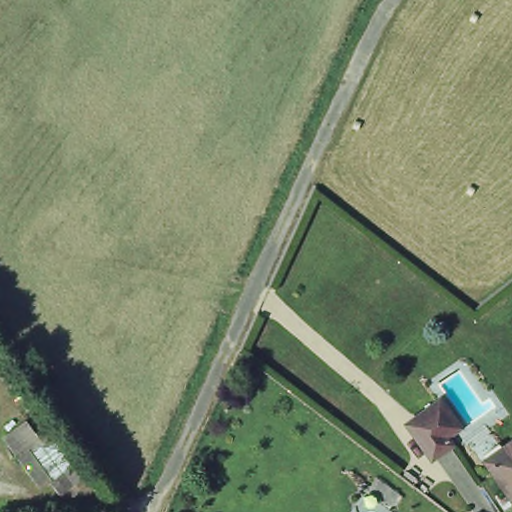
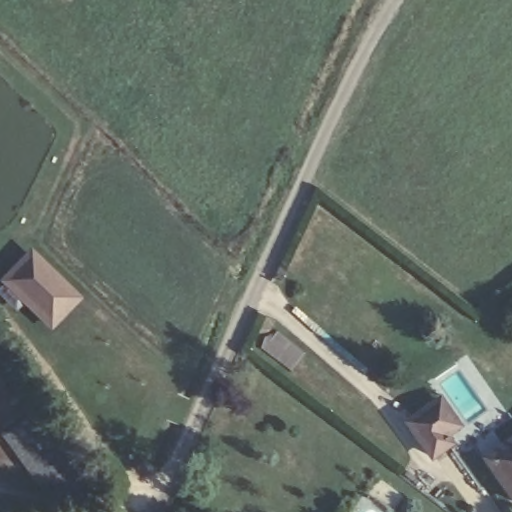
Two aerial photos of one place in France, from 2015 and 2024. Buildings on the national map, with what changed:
new [(1,286),(0,285),(0,279),(32,247),(84,298),(50,333),(21,306),(14,312),(0,298),(0,287),(1,286)]
new [(124,362),(80,390),(66,369),(107,338),(124,362)]
unchanged [(426,451),(403,417),(420,404),(433,395),(451,420),(438,429),(445,438),(426,451)]
unchanged [(98,491),(45,502),(3,440),(25,423),(37,433),(55,423),(98,491)]
unchanged [(506,448),(502,442),(512,435),(512,491),(490,460),(506,448)]

